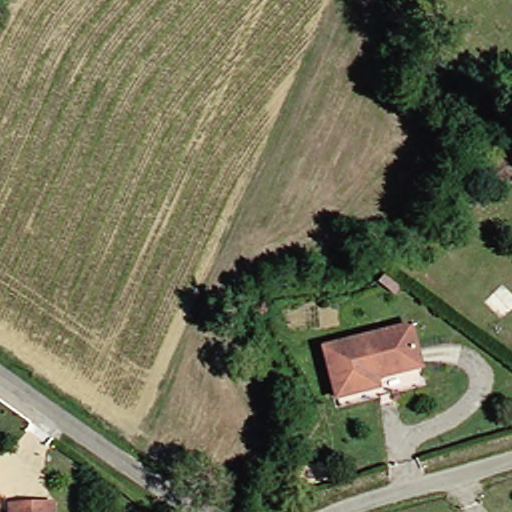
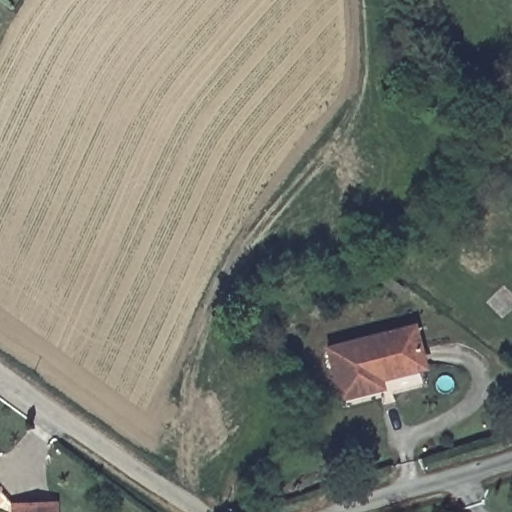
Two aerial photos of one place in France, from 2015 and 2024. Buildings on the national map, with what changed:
unchanged [(418,327),(426,369),(380,377),(382,386),(341,394),(332,343),(418,327)]
unchanged [(55,512),(13,512),(13,503),(55,505),(55,512)]

